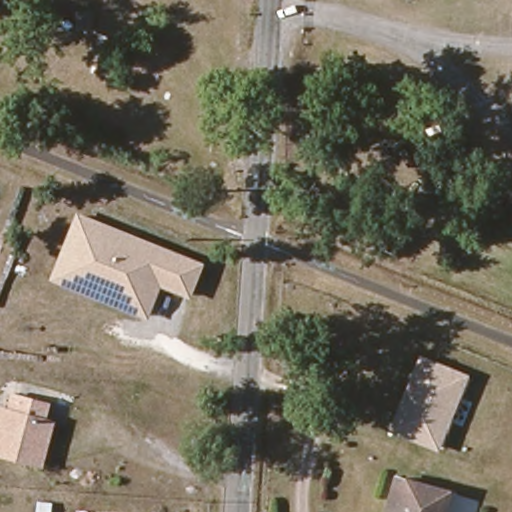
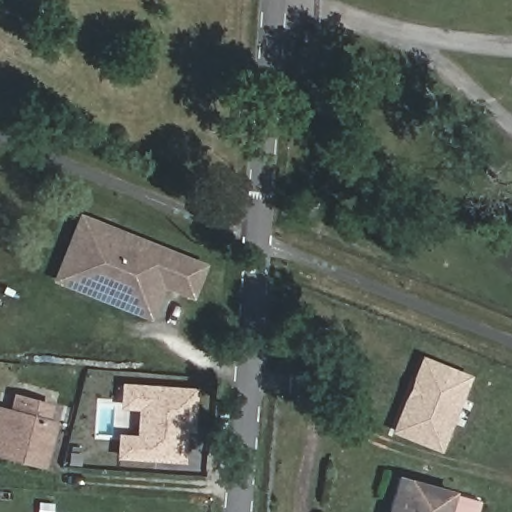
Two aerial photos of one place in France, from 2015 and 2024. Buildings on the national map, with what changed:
unchanged [(209,263),(194,299),(165,287),(150,319),(50,281),(78,212),(209,263)]
unchanged [(473,375),(440,453),(390,433),(421,355),(473,375)]
new [(117,433),(136,434),(137,410),(117,408),(120,382),(195,386),(194,432),(187,432),(185,462),(115,459),(117,433)]
unchanged [(44,468),(0,457),(11,414),(19,416),(23,399),(51,407),(47,423),(55,425),(44,468)]
unchanged [(392,512),(400,481),(454,496),(450,512),(392,512)]

